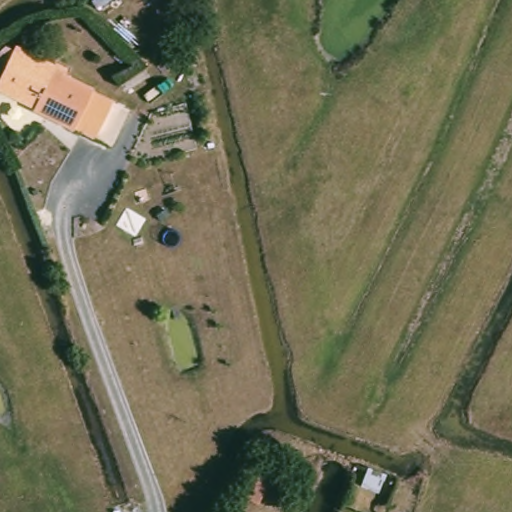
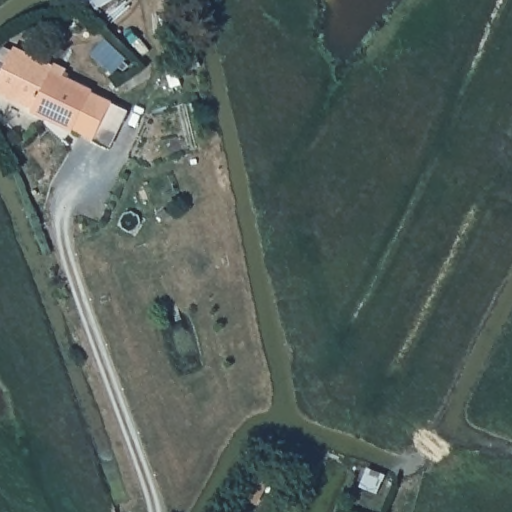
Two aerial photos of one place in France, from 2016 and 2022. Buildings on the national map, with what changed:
unchanged [(100,147),(84,139),(63,130),(62,132),(22,112),(23,110),(0,99),(0,57),(4,49),(43,67),(45,64),(57,70),(54,77),(82,91),(81,94),(101,103),(117,111),(100,147)]

